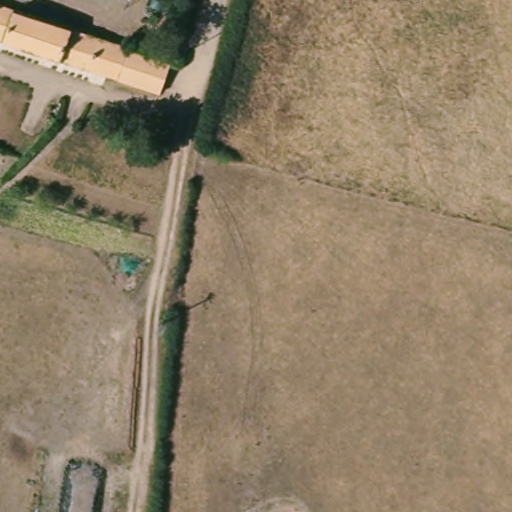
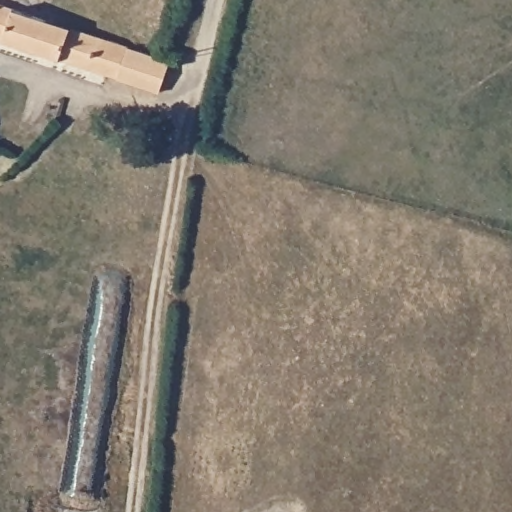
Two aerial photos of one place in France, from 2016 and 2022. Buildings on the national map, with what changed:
unchanged [(137,42),(122,78),(0,40),(0,0),(56,19),(137,42)]
unchanged [(137,42),(164,60),(172,66),(160,90),(122,78),(137,42)]

